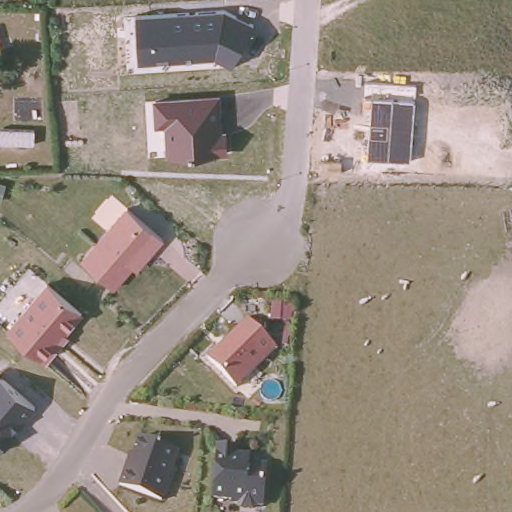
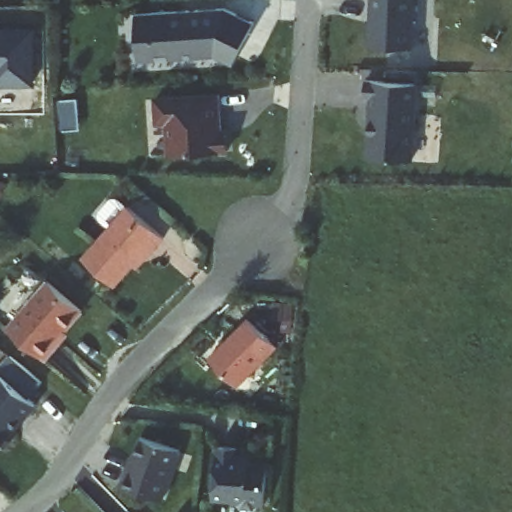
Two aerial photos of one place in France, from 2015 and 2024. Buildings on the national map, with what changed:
new [(364,23),(367,23),(367,11),(365,11),(366,0),(408,0),(405,49),(363,47),(364,23)]
unchanged [(227,12),(253,25),(232,66),(212,56),(137,60),(135,15),(227,12)]
new [(35,87),(0,87),(0,28),(35,28),(35,87)]
unchanged [(365,159),(370,98),(364,97),(365,78),(417,83),(414,102),(410,163),(365,159)]
new [(62,124),(60,111),(60,96),(75,95),(75,111),(76,123),(62,124)]
unchanged [(222,97),(223,131),(228,131),(228,153),(166,156),(165,127),(155,128),(153,99),(222,97)]
new [(107,225),(97,216),(97,210),(108,196),(115,196),(125,205),(107,225)]
unchanged [(161,235),(151,247),(147,243),(112,284),(80,256),(125,204),(161,235)]
unchanged [(50,285),(85,315),(59,344),(62,347),(48,363),(11,331),(50,285)]
unchanged [(247,317),(275,345),(267,354),(235,386),(212,363),(207,357),(247,317)]
unchanged [(22,416),(18,413),(7,426),(10,430),(8,433),(8,438),(2,445),(0,446),(0,374),(22,394),(33,404),(22,416)]
unchanged [(125,469),(130,453),(133,454),(140,435),(177,449),(161,497),(160,498),(158,498),(119,484),(125,469)]
unchanged [(215,487),(217,445),(236,446),(235,457),(248,458),(248,462),(265,463),(264,477),(262,503),(257,503),(252,507),(242,506),(237,501),(232,501),(232,498),(213,496),(215,487)]

